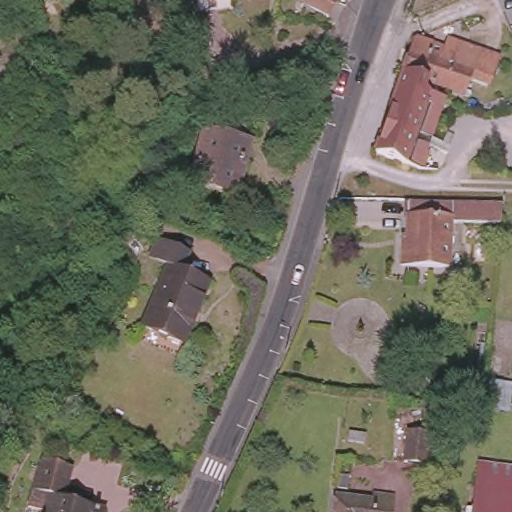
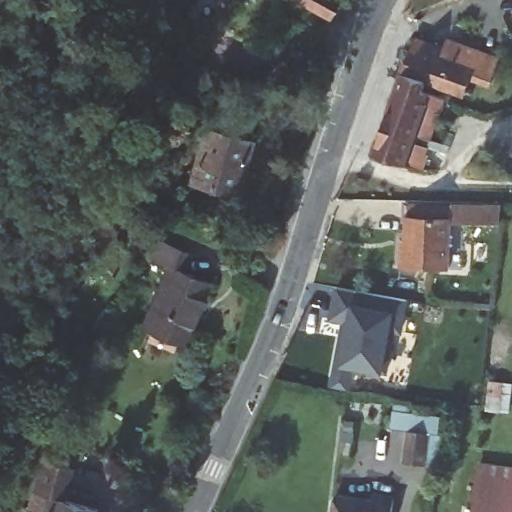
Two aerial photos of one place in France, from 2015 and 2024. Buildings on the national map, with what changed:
unchanged [(312,0),(333,0),(326,10),(312,0)]
demolished [(448,0),(449,2),(453,0),(500,0),(426,29),(418,10),(442,0),(448,0)]
unchanged [(395,79),(406,42),(440,52),(443,42),(469,50),(455,95),(419,85),(395,79)]
unchanged [(195,93),(185,96),(180,77),(206,69),(211,88),(195,93)]
unchanged [(437,99),(424,150),(426,150),(420,172),(374,160),(395,79),(419,85),(416,94),(437,99)]
unchanged [(232,192),(190,180),(204,127),(246,139),(232,192)]
unchanged [(396,243),(401,243),(403,209),(497,212),(496,229),(446,227),(444,251),(456,251),(456,273),(394,271),(396,243)]
unchanged [(213,285),(184,347),(144,328),(173,266),(154,258),(163,240),(195,254),(187,272),(213,285)]
new [(355,369),(352,387),(331,382),(342,323),(342,312),(330,310),(335,287),(407,301),(408,307),(403,332),(393,331),(385,375),(355,369)]
unchanged [(431,427),(428,458),(408,457),(410,426),(431,427)]
unchanged [(105,512),(104,512),(40,512),(41,510),(27,507),(36,477),(41,459),(72,468),(67,486),(63,499),(105,512)]
unchanged [(470,512),(477,465),(512,470),(512,503),(511,512),(473,512),(470,512)]
unchanged [(375,492),(377,486),(397,488),(393,512),(360,512),(363,491),(375,492)]
unchanged [(338,488),(363,491),(360,512),(335,512),(338,488)]

